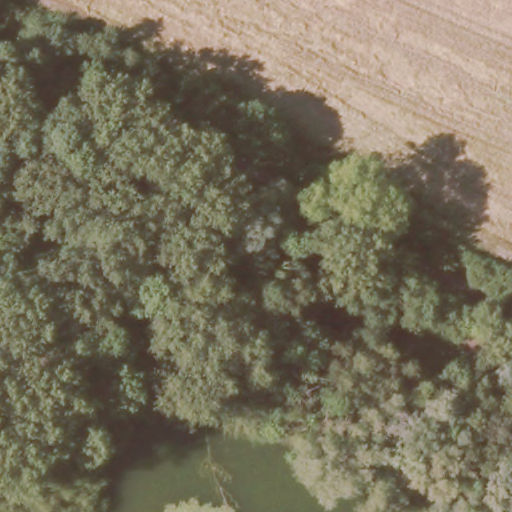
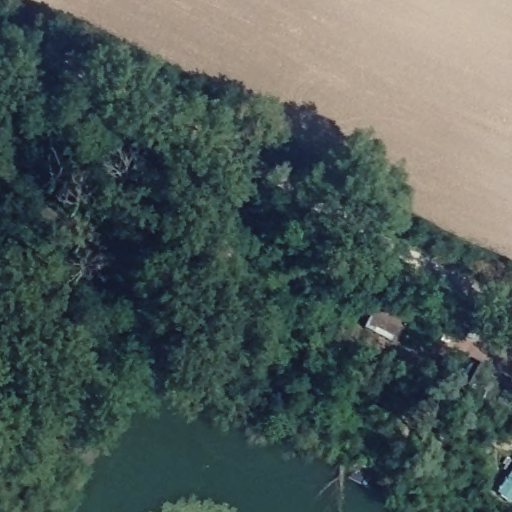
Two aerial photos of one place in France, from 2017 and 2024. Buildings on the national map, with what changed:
unchanged [(392,345),(369,332),(362,342),(317,324),(334,289),(402,323),(392,345)]

